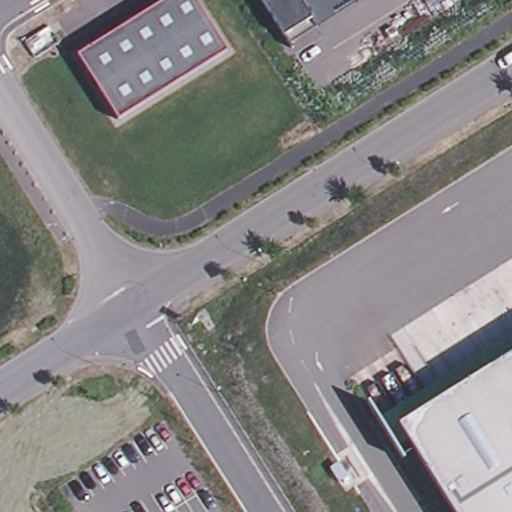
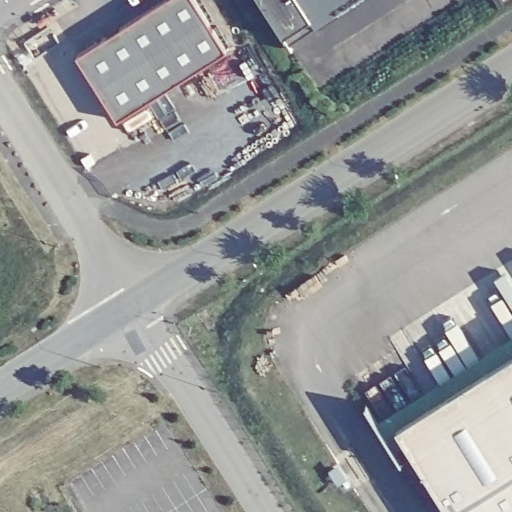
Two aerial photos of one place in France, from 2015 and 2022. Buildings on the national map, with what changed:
unchanged [(162,0),(194,0),(225,51),(116,121),(75,55),(162,0)]
unchanged [(287,41),(261,0),(353,0),(287,41)]
unchanged [(512,512),(453,512),(398,427),(512,355),(512,512)]

